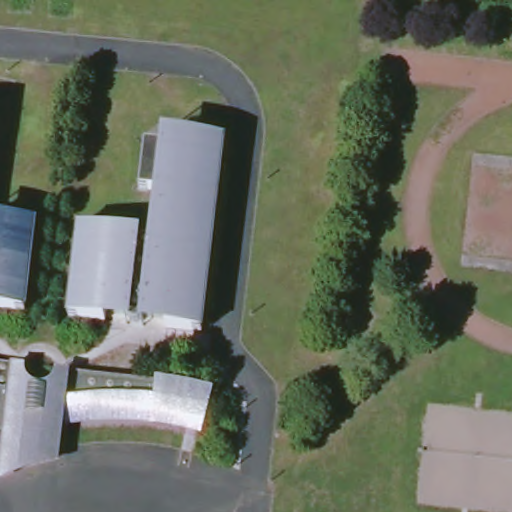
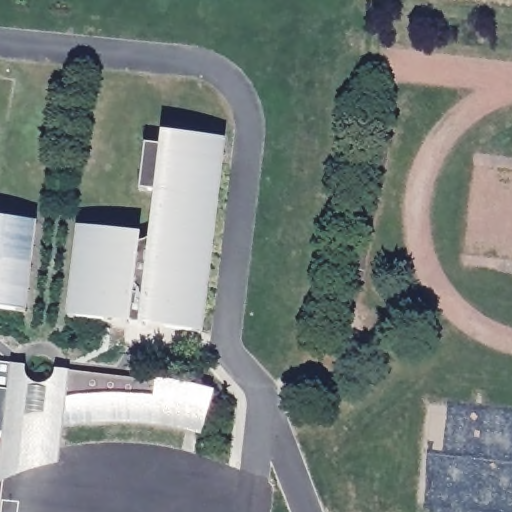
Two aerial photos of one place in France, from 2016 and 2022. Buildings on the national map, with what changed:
unchanged [(159,326),(161,316),(139,313),(136,316),(133,318),(130,320),(126,318),(124,316),(124,310),(100,306),(99,314),(63,308),(80,219),(115,225),(114,235),(135,240),(143,240),(146,240),(149,232),(156,194),(142,191),(151,143),(226,157),(193,332),(159,326)]
unchanged [(0,307),(0,225),(3,216),(30,222),(14,309),(0,307)]
unchanged [(11,359),(16,365),(6,438),(6,445),(3,460),(0,462),(0,357),(11,359)]
unchanged [(23,365),(24,370),(28,375),(33,380),(38,383),(45,383),(53,378),(58,372),(67,375),(61,425),(53,427),(38,430),(6,438),(16,365),(23,365)]
unchanged [(70,371),(132,382),(178,390),(212,402),(203,434),(180,430),(152,425),(127,422),(101,421),(78,422),(61,425),(67,375),(70,371)]
unchanged [(18,441),(32,437),(43,435),(61,431),(58,465),(0,483),(3,467),(3,460),(6,445),(18,441)]

